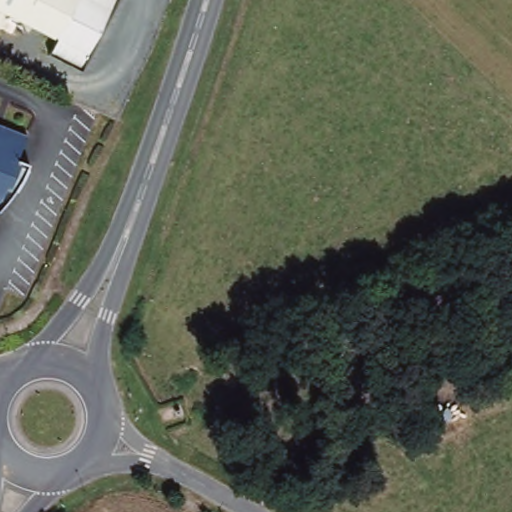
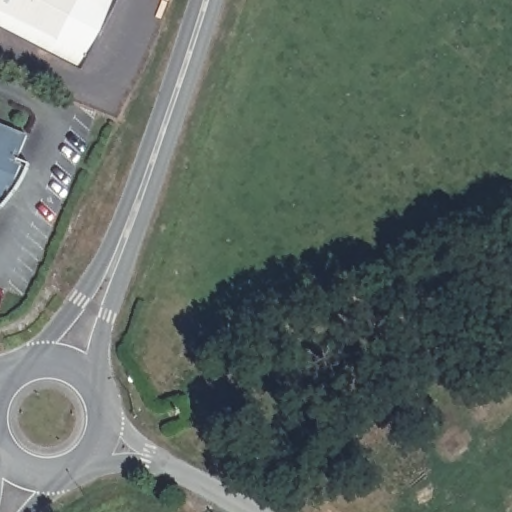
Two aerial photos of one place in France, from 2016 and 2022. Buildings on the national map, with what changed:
unchanged [(80,72),(49,57),(55,42),(2,16),(0,20),(0,0),(116,0),(80,72)]
unchanged [(11,169),(16,171),(8,195),(1,193),(0,196),(0,135),(20,144),(11,169)]

